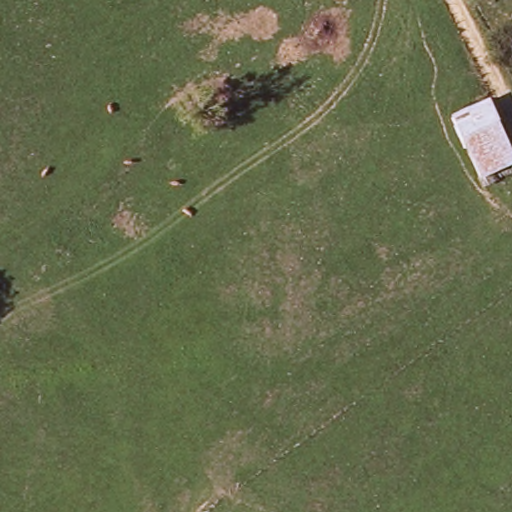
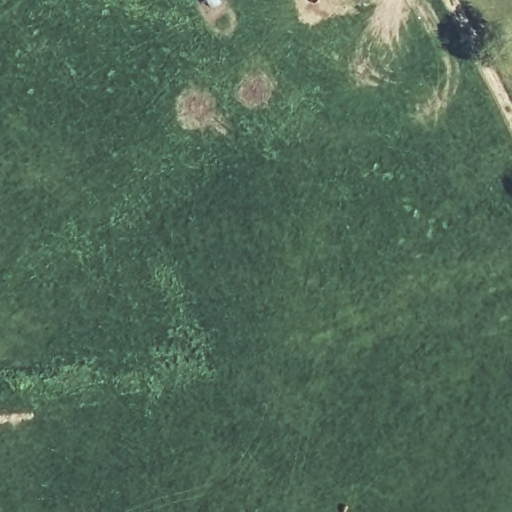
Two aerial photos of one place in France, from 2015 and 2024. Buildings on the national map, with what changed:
demolished [(496,96),(512,133),(512,199),(502,204),(459,114),(496,96)]

